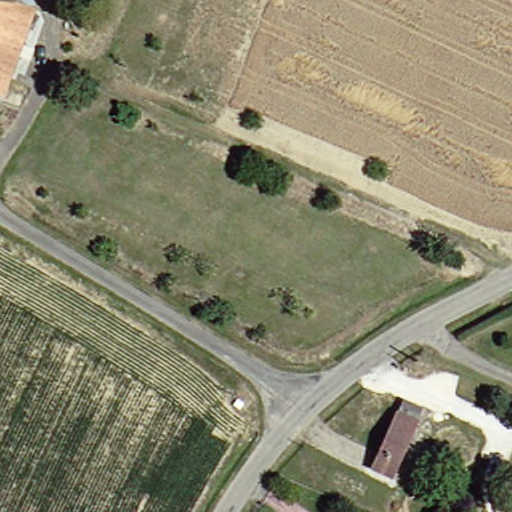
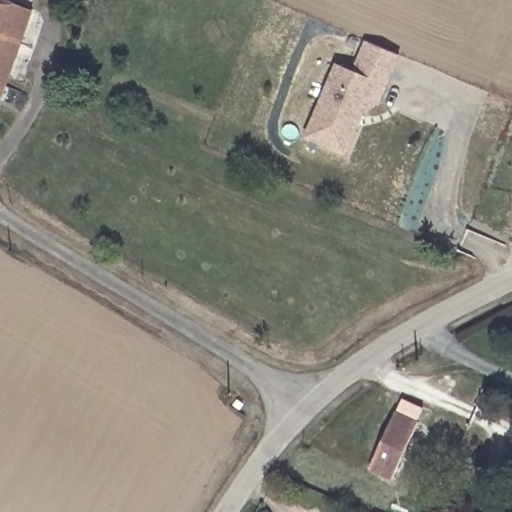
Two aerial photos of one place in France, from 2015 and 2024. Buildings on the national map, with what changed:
unchanged [(24,24),(3,16),(0,27),(0,0),(3,0),(30,12),(24,24)]
unchanged [(0,68),(0,27),(3,16),(24,24),(8,70),(0,68)]
new [(365,41),(397,54),(384,85),(352,72),(365,41)]
new [(335,65),(352,72),(384,85),(379,99),(368,94),(344,153),(305,135),(335,65)]
unchanged [(1,90),(0,90),(0,68),(8,70),(1,90)]
unchanged [(387,477),(362,467),(398,397),(421,407),(387,477)]

